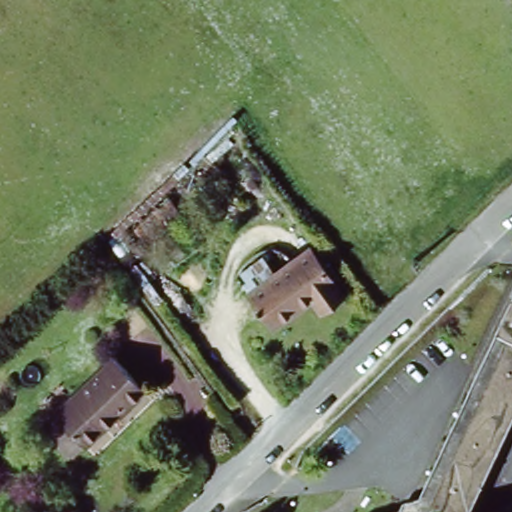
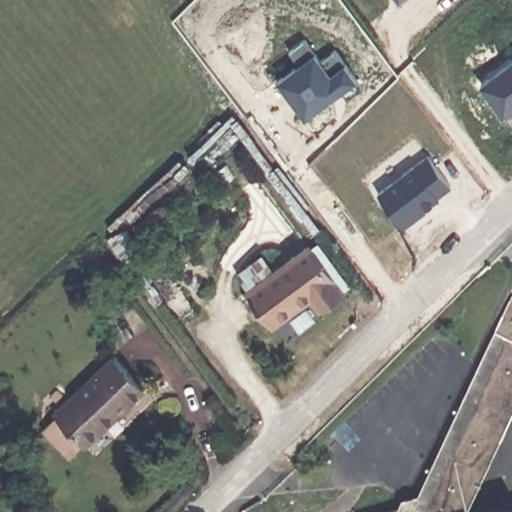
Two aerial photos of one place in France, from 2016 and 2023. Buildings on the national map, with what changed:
new [(397,0),(403,0),(399,3),(397,0)]
new [(295,67),(295,60),(288,51),(304,39),(320,60),(335,50),(362,87),(347,98),(340,89),(328,98),(329,99),(305,117),(277,80),(295,67)]
new [(512,112),(506,117),(481,84),(512,60),(512,112)]
new [(414,165),(425,156),(450,185),(435,196),(439,199),(403,226),(377,193),(414,165)]
unchanged [(309,299),(273,325),(248,294),(308,248),(342,293),(319,311),(309,299)]
unchanged [(512,315),(512,425),(470,509),(470,512),(385,512),(415,505),(512,315)]
unchanged [(81,450),(70,460),(47,434),(57,424),(52,419),(113,363),(143,397),(83,452),(81,450)]

